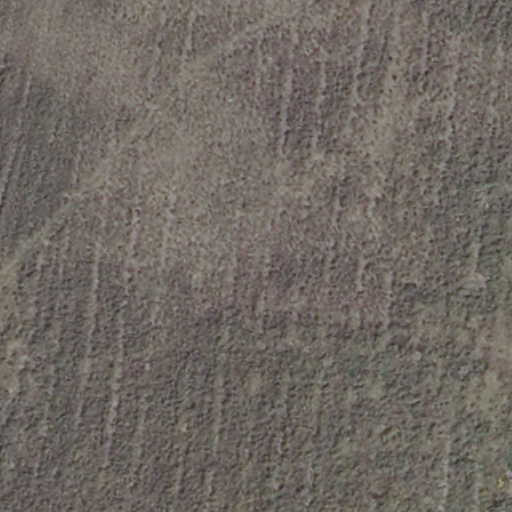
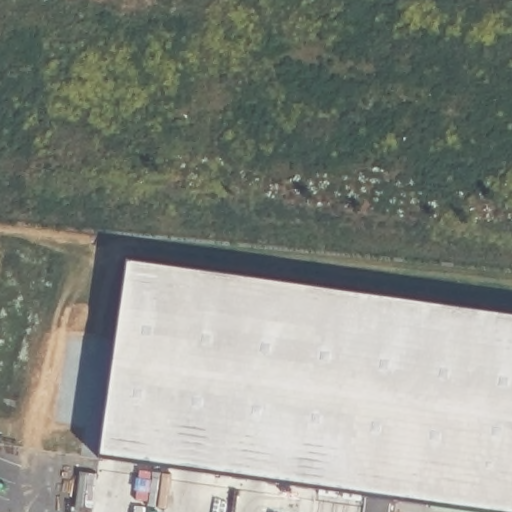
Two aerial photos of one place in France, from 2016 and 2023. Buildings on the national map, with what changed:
new [(128,268),(512,325),(512,512),(454,512),(102,461),(128,268)]

